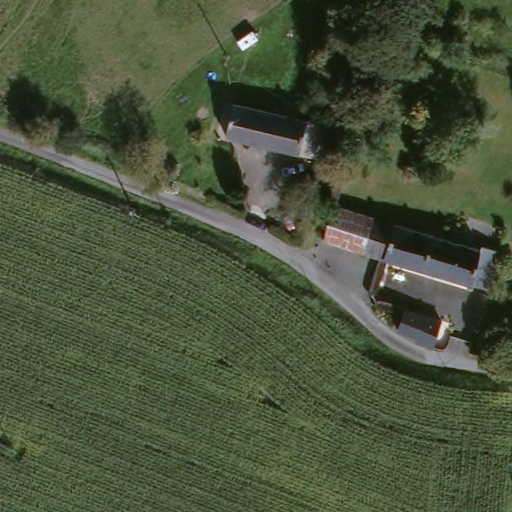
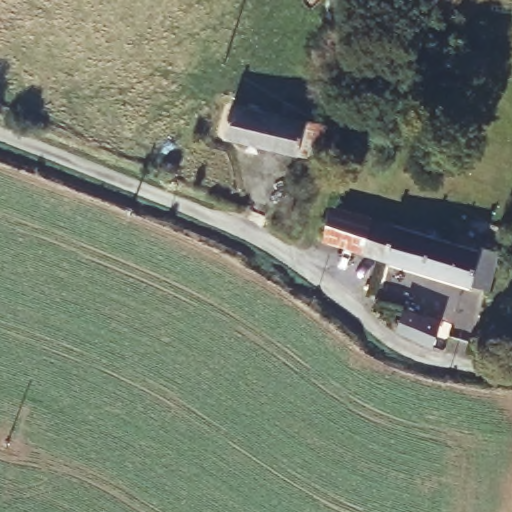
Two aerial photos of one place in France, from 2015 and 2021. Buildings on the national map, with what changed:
unchanged [(324,153),(229,134),(238,100),(332,121),(324,153)]
unchanged [(335,202),(484,246),(506,252),(494,288),(471,282),(323,240),(335,202)]
unchanged [(403,310),(441,325),(433,347),(394,332),(403,310)]

